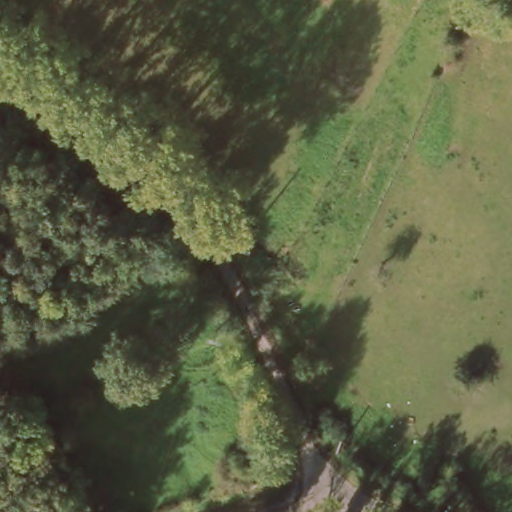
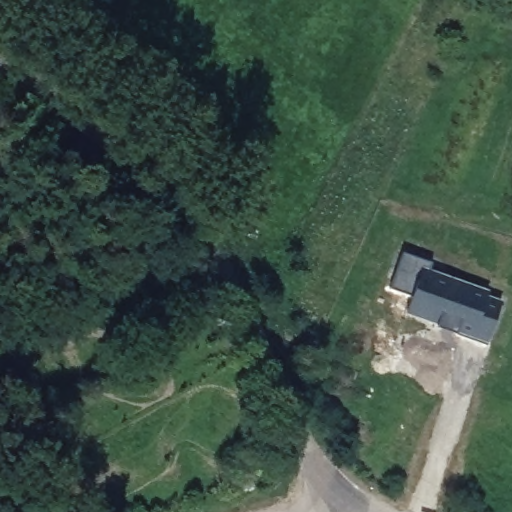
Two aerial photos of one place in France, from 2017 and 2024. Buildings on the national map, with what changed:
new [(431,264),(429,271),(489,292),(487,297),(501,302),(487,343),(486,346),(456,335),(436,328),(437,324),(405,314),(411,297),(390,289),(402,254),(431,264)]

